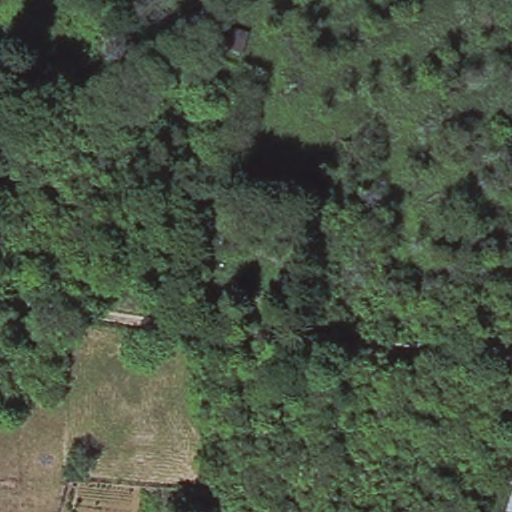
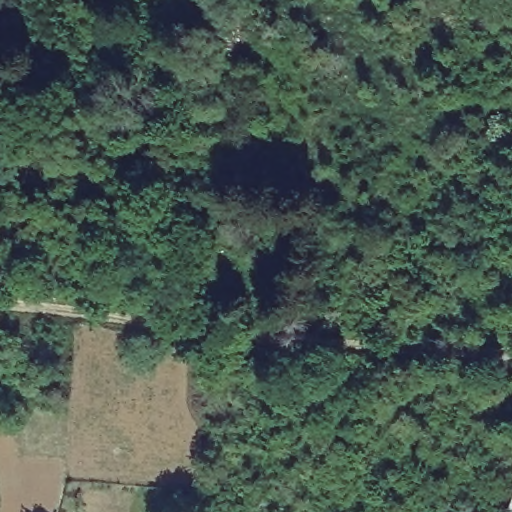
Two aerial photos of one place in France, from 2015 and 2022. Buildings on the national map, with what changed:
unchanged [(505,509),(512,488),(512,511),(505,509)]

